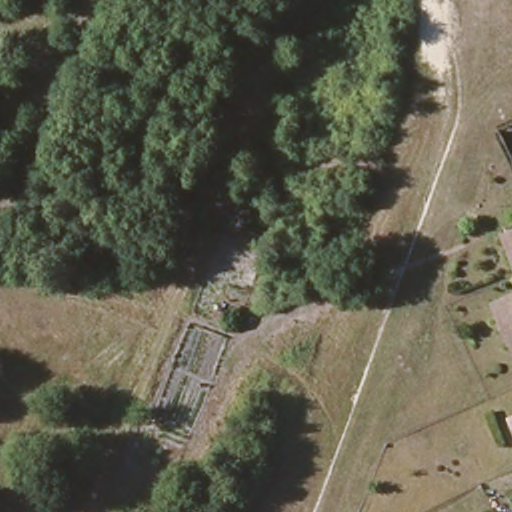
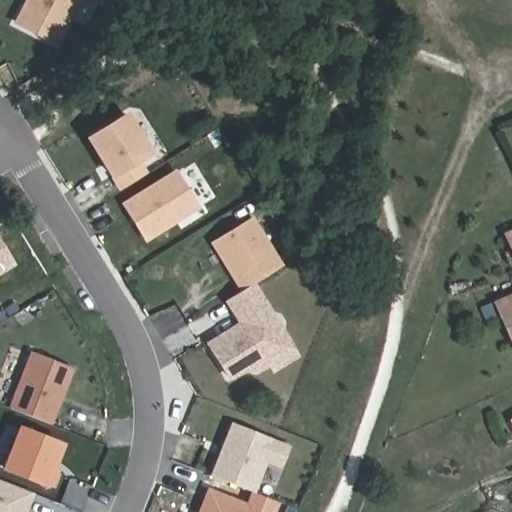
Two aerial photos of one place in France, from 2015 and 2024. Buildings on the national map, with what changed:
new [(32,0),(81,0),(59,44),(20,24),(32,0)]
new [(136,118),(159,156),(127,176),(122,179),(99,141),(103,139),(136,118)]
new [(177,171),(201,209),(145,243),(122,206),(177,171)]
new [(272,362),(260,369),(250,367),(233,378),(212,343),(233,330),(245,323),(237,312),(230,300),(245,290),(217,244),(255,220),(283,266),(255,284),(262,297),(291,342),(299,356),(277,370),(272,362)]
unchanged [(503,233),(505,236),(512,232),(512,255),(502,234),(503,233)]
new [(15,266),(0,275),(0,241),(15,266)]
unchanged [(492,302),(493,301),(495,304),(512,296),(512,346),(510,342),(492,302)]
new [(36,356),(75,371),(53,426),(15,411),(36,356)]
unchanged [(508,423),(507,423),(512,421),(512,424),(511,422),(508,423)]
new [(232,427),(287,447),(279,465),(264,459),(251,492),(212,477),(232,427)]
new [(25,432),(61,446),(52,470),(61,474),(55,489),(10,471),(25,432)]
new [(36,495),(29,512),(0,512),(0,481),(36,495)]
new [(247,507),(254,493),(276,502),(272,512),(200,512),(209,492),(247,507)]

